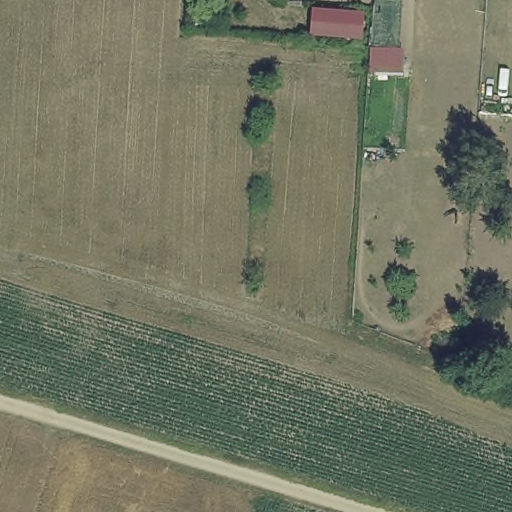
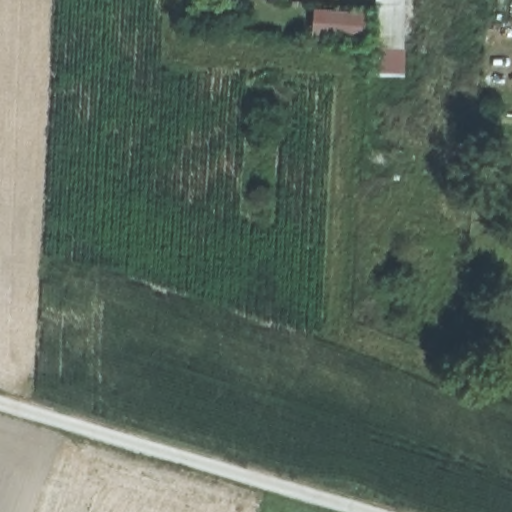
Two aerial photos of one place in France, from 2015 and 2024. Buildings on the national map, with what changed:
unchanged [(405,50),(403,75),(367,74),(372,0),(402,0),(399,49),(405,50)]
unchanged [(363,41),(308,37),(311,7),(343,10),(344,7),(368,9),(363,41)]

